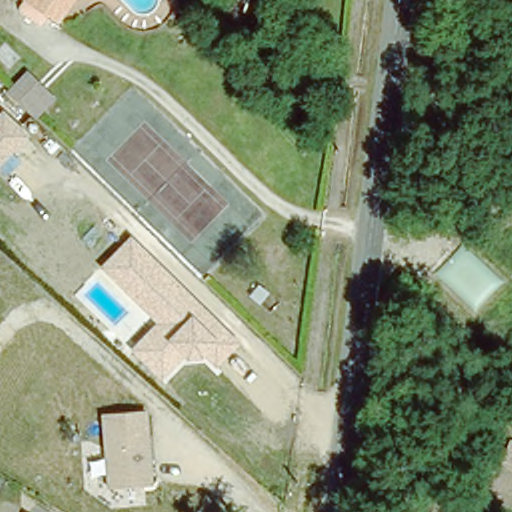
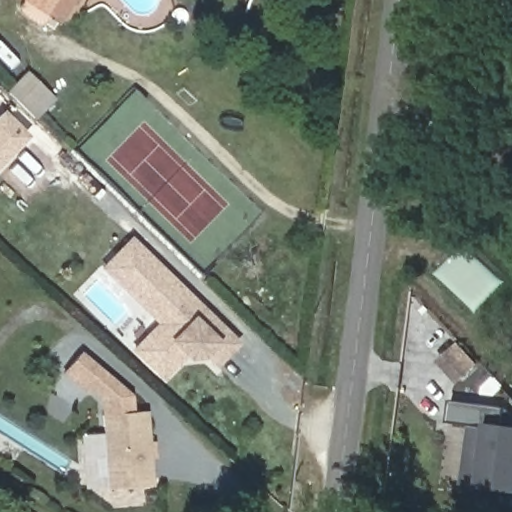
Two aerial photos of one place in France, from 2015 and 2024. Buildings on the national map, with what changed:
unchanged [(54,0),(49,6),(41,0),(54,0)]
unchanged [(37,119),(7,92),(27,71),(57,99),(37,119)]
unchanged [(0,114),(5,110),(30,137),(0,166),(0,114)]
unchanged [(216,365),(200,352),(185,353),(162,378),(140,356),(162,331),(162,323),(109,268),(134,243),(235,342),(216,365)]
new [(80,350),(132,395),(132,411),(100,414),(99,400),(87,390),(84,393),(60,372),(80,350)]
new [(512,453),(507,486),(467,482),(472,425),(450,422),(452,402),(505,405),(503,426),(512,427),(512,454),(512,453)]
unchanged [(132,411),(147,410),(155,484),(107,488),(100,414),(132,411)]

